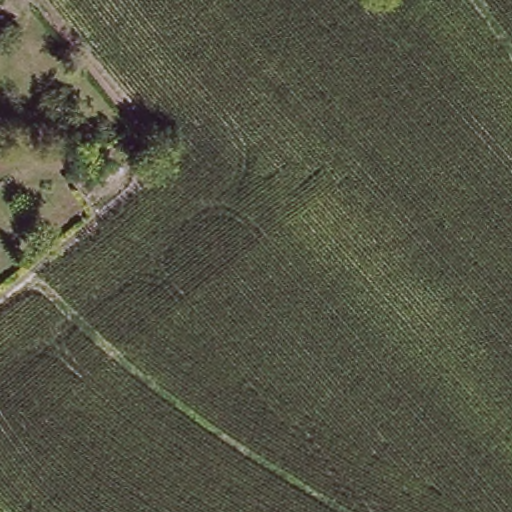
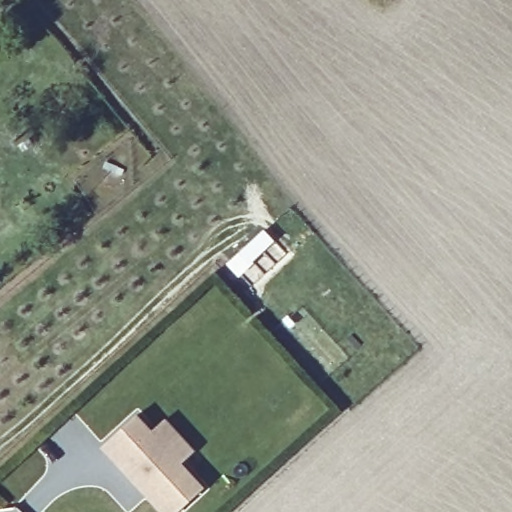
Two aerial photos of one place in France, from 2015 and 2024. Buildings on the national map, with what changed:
new [(155,429),(167,417),(196,450),(184,461),(207,486),(177,512),(160,512),(102,448),(140,413),(155,429)]

